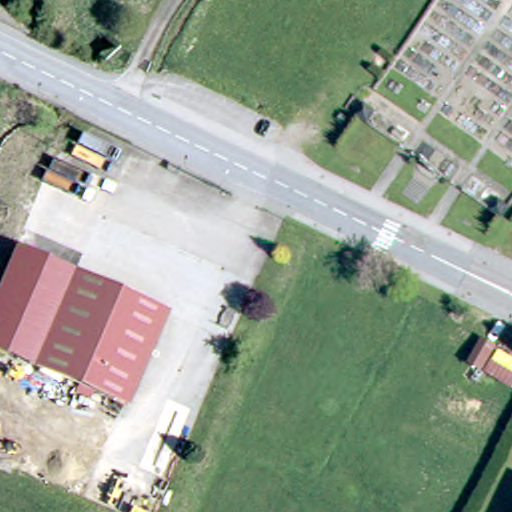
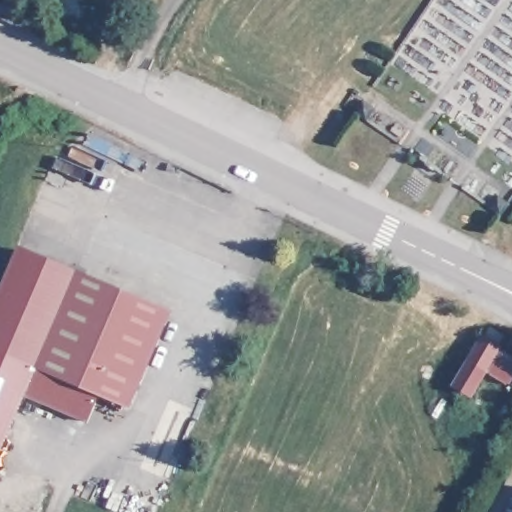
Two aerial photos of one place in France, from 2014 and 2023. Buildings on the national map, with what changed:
unchanged [(0,20),(0,7),(26,19),(32,34),(0,20)]
unchanged [(367,118),(355,110),(363,98),(375,107),(367,118)]
unchanged [(500,214),(487,205),(496,193),(509,202),(500,214)]
unchanged [(37,367),(0,351),(0,286),(17,248),(77,274),(37,367)]
unchanged [(128,406),(37,367),(77,274),(168,313),(128,406)]
unchanged [(499,344),(483,366),(468,358),(483,337),(499,344)]
new [(87,424),(24,397),(0,451),(0,351),(37,367),(97,393),(87,424)]

